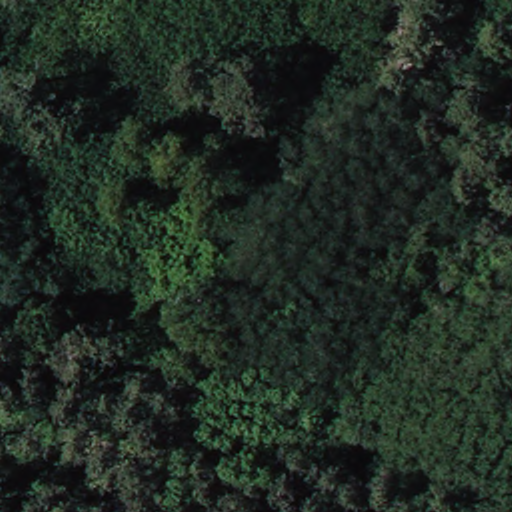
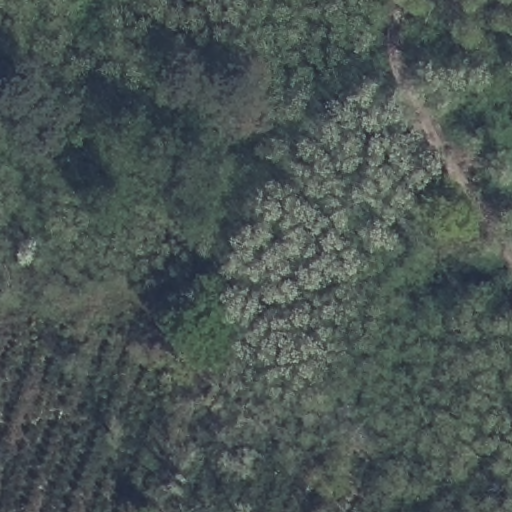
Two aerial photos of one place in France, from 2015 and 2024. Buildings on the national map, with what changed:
[]

